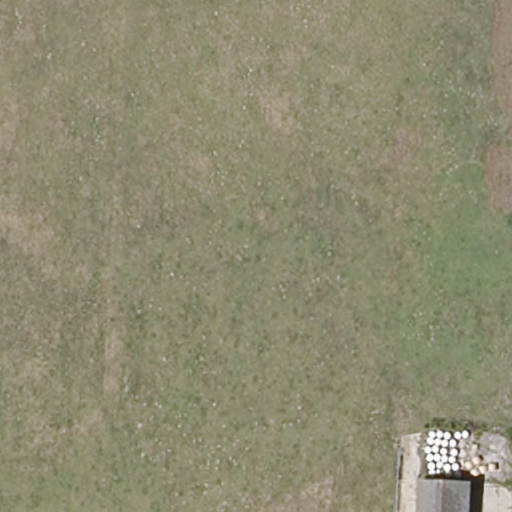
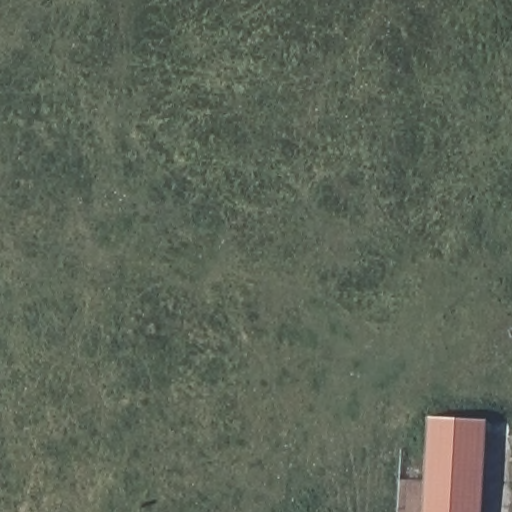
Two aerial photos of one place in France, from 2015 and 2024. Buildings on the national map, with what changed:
new [(483,421),(478,512),(468,512),(469,478),(420,476),(425,417),(483,421)]
unchanged [(468,512),(419,512),(420,476),(469,478),(468,512)]

